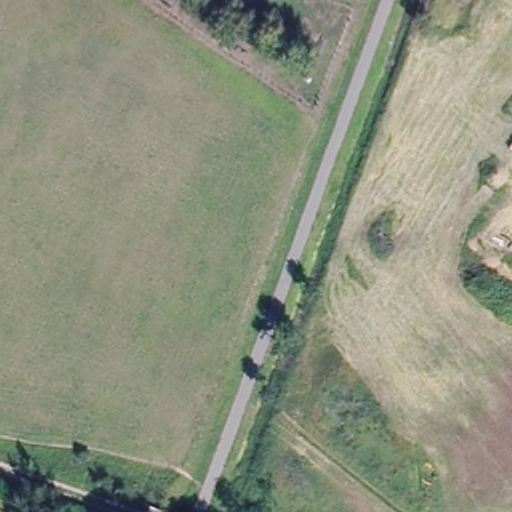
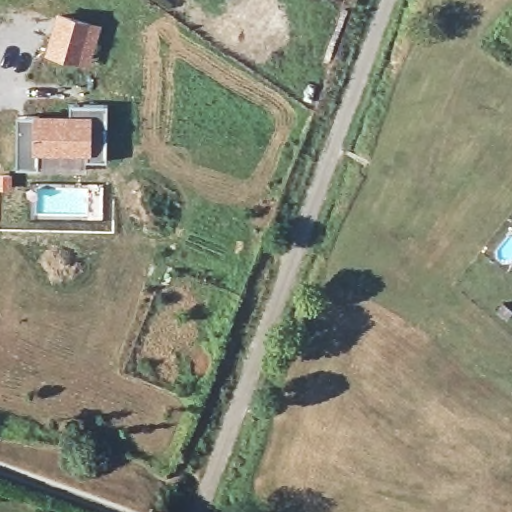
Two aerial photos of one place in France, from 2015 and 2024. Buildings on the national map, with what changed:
new [(58,11),(102,24),(90,66),(45,54),(58,11)]
new [(34,116),(34,114),(72,113),(71,105),(106,105),(107,159),(89,159),(89,154),(38,153),(38,166),(17,166),(18,116),(34,116)]

